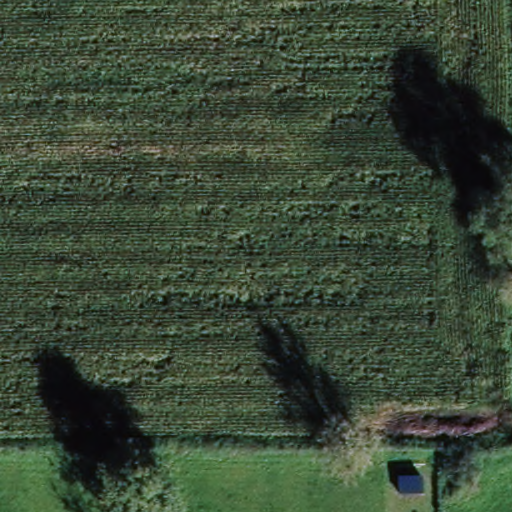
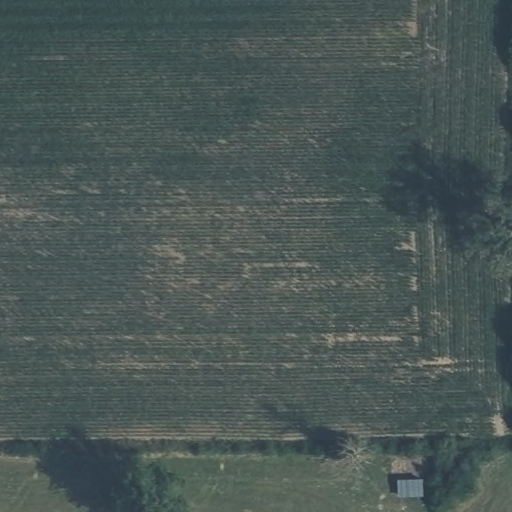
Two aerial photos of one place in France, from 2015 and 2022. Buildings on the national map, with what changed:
[]

